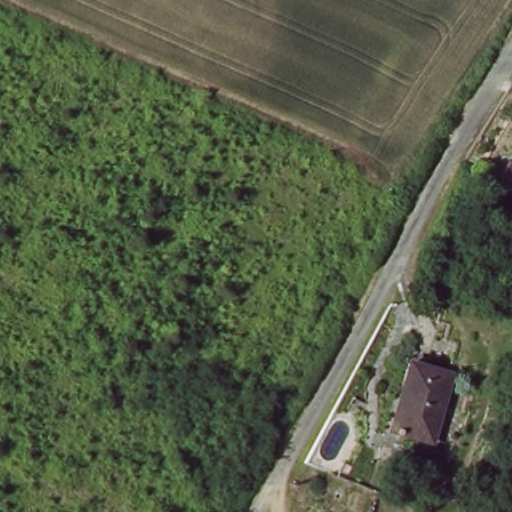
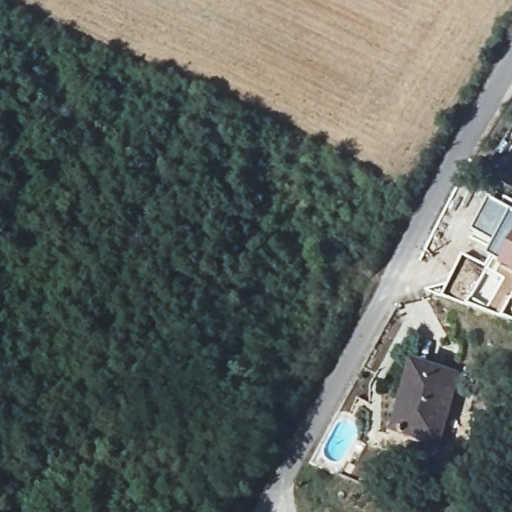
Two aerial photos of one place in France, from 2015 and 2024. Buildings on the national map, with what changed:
new [(490,197),(512,209),(512,214),(493,249),(469,236),(490,197)]
new [(504,318),(469,307),(489,265),(485,263),(489,256),(493,249),(512,214),(512,321),(504,318)]
new [(462,252),(485,263),(489,265),(469,307),(440,296),(462,252)]
unchanged [(414,380),(420,361),(459,373),(451,396),(437,439),(399,427),(414,380)]

